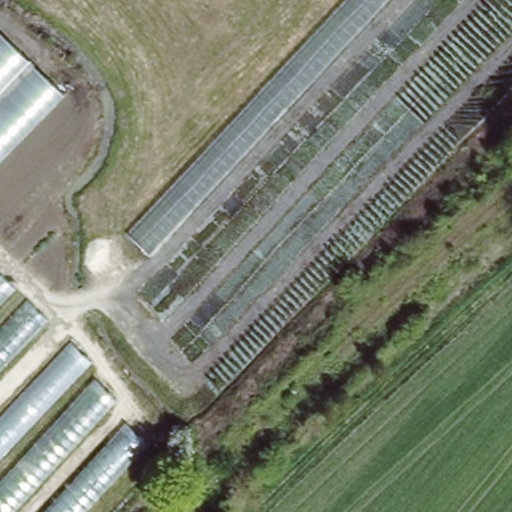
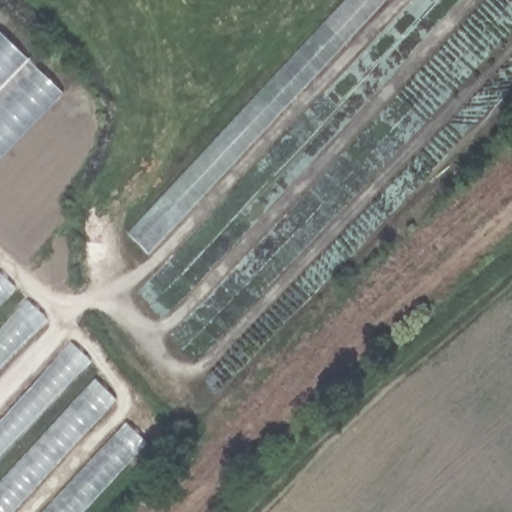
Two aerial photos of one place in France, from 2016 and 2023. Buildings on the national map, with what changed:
unchanged [(343,0),(385,0),(145,255),(122,232),(343,0)]
unchanged [(66,95),(0,162),(0,31),(66,95)]
unchanged [(10,282),(0,293),(0,273),(10,282)]
unchanged [(10,282),(47,317),(0,368),(0,293),(10,282)]
unchanged [(92,373),(87,378),(122,411),(114,419),(140,443),(77,512),(0,512),(0,410),(63,343),(92,373)]

